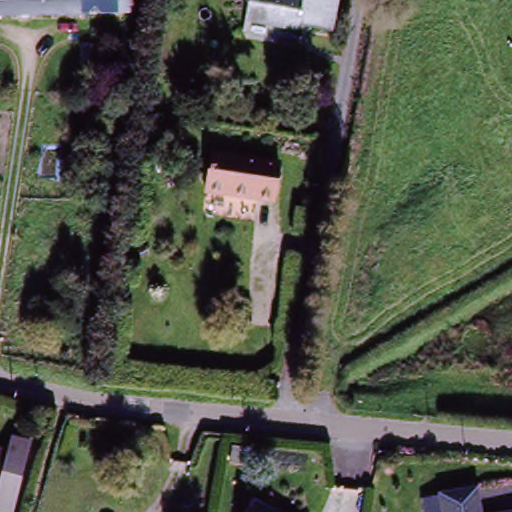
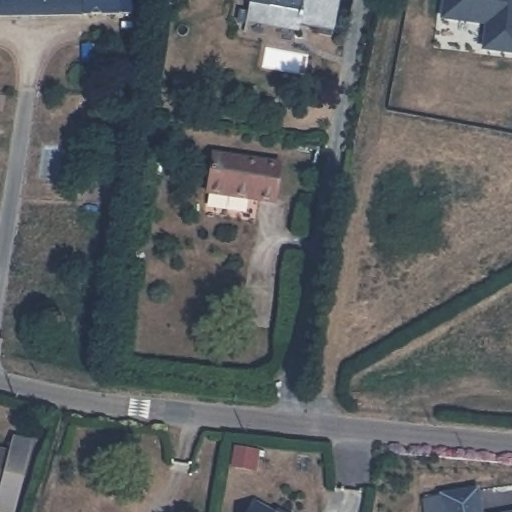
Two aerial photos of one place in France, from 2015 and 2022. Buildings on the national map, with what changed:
unchanged [(116,9),(0,11),(0,0),(133,0),(133,9),(116,9)]
unchanged [(332,33),(297,27),(300,15),(297,15),(291,13),(287,31),(258,26),(262,7),(244,4),(244,0),(338,0),(334,22),(332,33)]
new [(512,0),(512,55),(482,51),(485,26),(441,20),(443,0),(512,0)]
unchanged [(278,164),(273,204),(207,194),(212,154),(278,164)]
unchanged [(0,479),(0,450),(7,452),(0,479)]
unchanged [(441,497),(476,491),(479,512),(443,512),(441,497)]
unchanged [(262,507),(272,512),(259,512),(262,507)]

